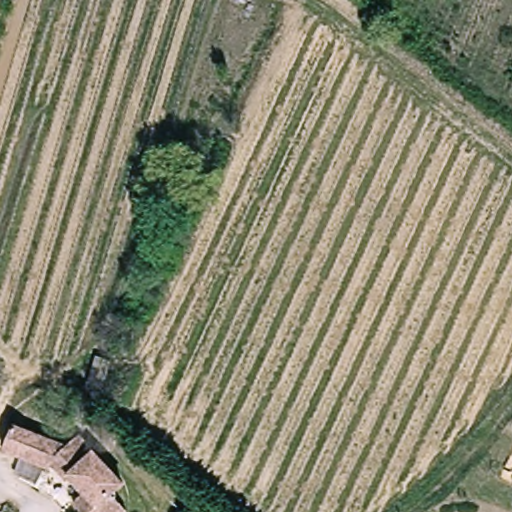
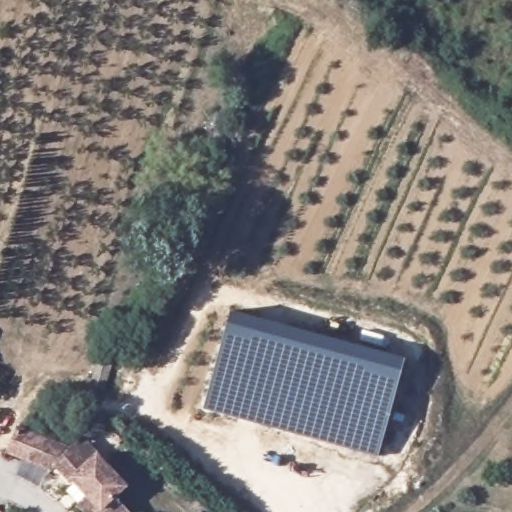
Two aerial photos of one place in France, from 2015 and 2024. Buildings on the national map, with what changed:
new [(405,359),(379,457),(203,410),(230,311),(405,359)]
unchanged [(82,444),(88,438),(105,454),(135,483),(123,494),(138,509),(135,512),(94,512),(87,506),(98,495),(81,478),(78,480),(62,464),(57,469),(13,453),(22,429),(77,449),(82,444)]

